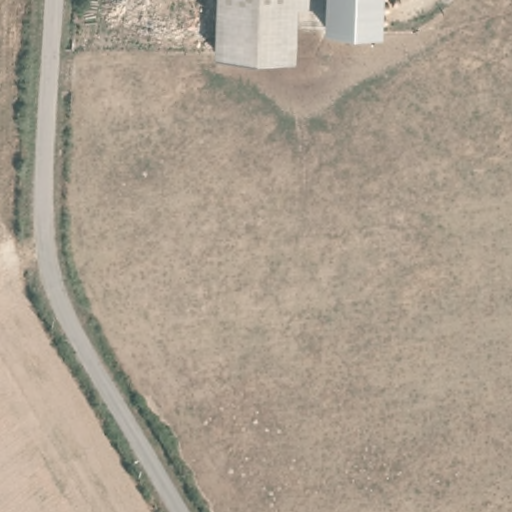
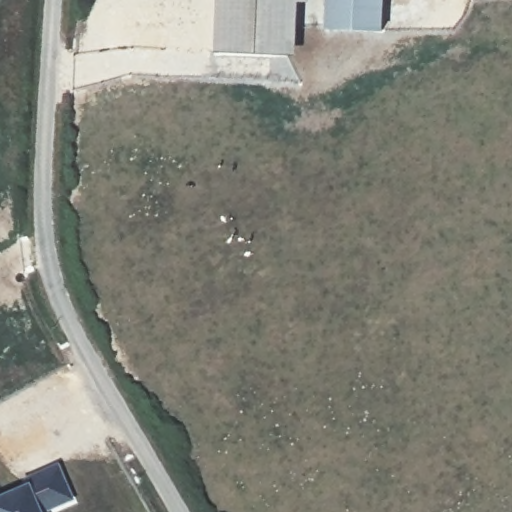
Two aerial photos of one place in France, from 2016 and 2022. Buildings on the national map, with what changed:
unchanged [(308,2),(298,2),(296,55),(215,52),(217,0),(308,0),(308,2)]
unchanged [(384,33),(325,30),(326,0),(385,0),(384,33)]
new [(0,512),(0,495),(23,485),(21,479),(57,463),(72,500),(42,512),(0,512)]

